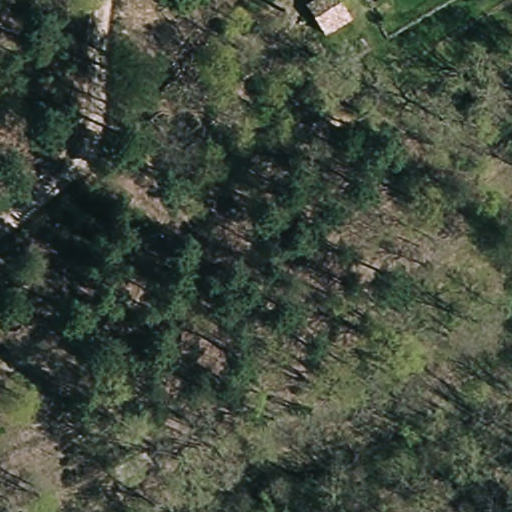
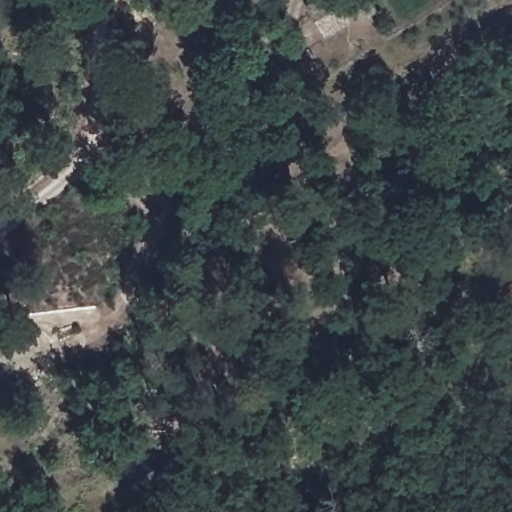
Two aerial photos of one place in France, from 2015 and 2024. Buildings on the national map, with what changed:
unchanged [(307,4),(314,0),(338,0),(350,20),(325,35),(307,4)]

